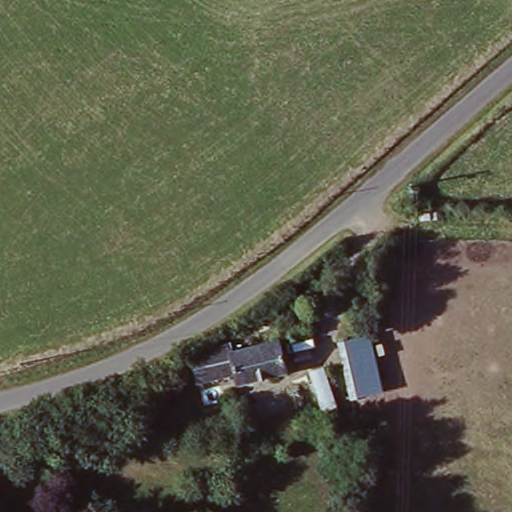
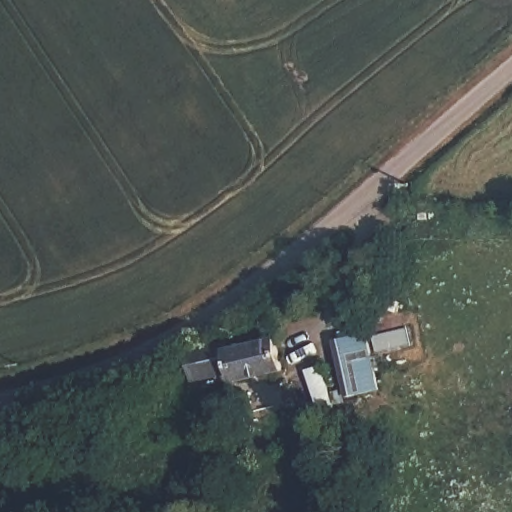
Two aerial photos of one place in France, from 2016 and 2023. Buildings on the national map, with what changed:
unchanged [(370,330),(382,386),(350,393),(338,337),(370,330)]
unchanged [(229,343),(231,351),(278,341),(285,372),(236,383),(234,374),(195,382),(189,355),(229,343)]

